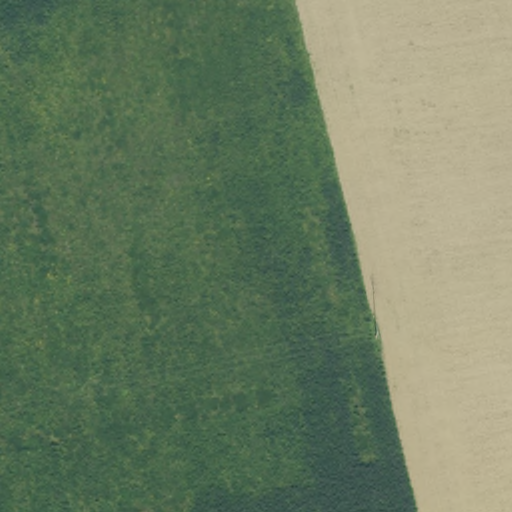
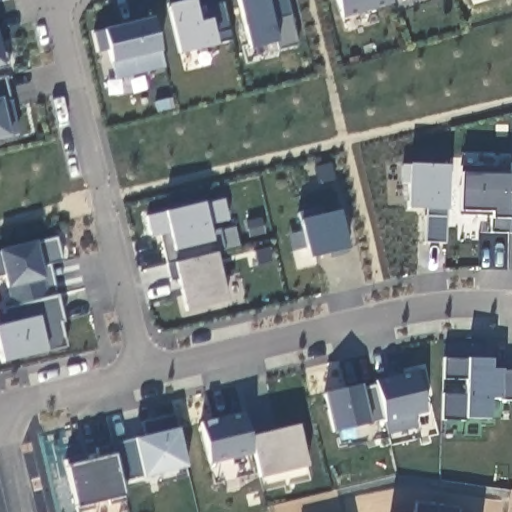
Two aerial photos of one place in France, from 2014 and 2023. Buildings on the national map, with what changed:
new [(247,47),(236,0),(286,0),(297,47),(277,52),(275,44),(248,51),(247,47)]
new [(391,3),(340,18),(335,0),(390,0),(391,3)]
new [(194,18),(205,15),(203,6),(221,2),(227,30),(230,40),(178,53),(167,6),(190,1),(194,18)]
new [(117,82),(112,64),(104,30),(152,18),(161,52),(167,70),(117,82)]
new [(0,69),(0,42),(7,68),(0,69)]
new [(7,101),(0,103),(0,77),(2,77),(7,101)]
new [(10,111),(15,132),(0,136),(0,107),(2,113),(10,111)]
new [(509,233),(509,212),(487,212),(486,217),(461,215),(462,166),(501,168),(501,174),(510,175),(512,162),(512,233),(509,233)]
new [(446,210),(446,244),(425,243),(427,209),(407,208),(408,164),(448,166),(446,210)]
new [(209,225),(211,234),(220,231),(224,250),(216,254),(227,302),(185,313),(174,264),(177,262),(172,250),(169,233),(152,237),(147,217),(163,212),(203,203),(219,201),(224,221),(209,225)]
new [(309,259),(300,220),(340,212),(348,249),(309,259)]
new [(58,296),(64,322),(60,323),(66,346),(47,351),(2,364),(0,357),(0,326),(0,309),(9,307),(6,288),(0,264),(0,250),(36,243),(57,238),(64,261),(51,265),(58,296)]
new [(421,394),(426,414),(416,416),(419,428),(388,435),(385,421),(371,425),(335,432),(324,393),(361,384),(363,391),(378,387),(377,380),(417,372),(425,369),(429,390),(421,394)]
new [(260,479),(254,456),(210,465),(201,421),(245,412),(250,437),(299,424),(309,467),(260,479)]
new [(178,429),(189,468),(144,478),(122,483),(114,445),(135,439),(147,437),(142,422),(175,415),(178,429)]
new [(122,483),(126,500),(77,510),(66,461),(97,454),(96,449),(114,445),(122,483)]

